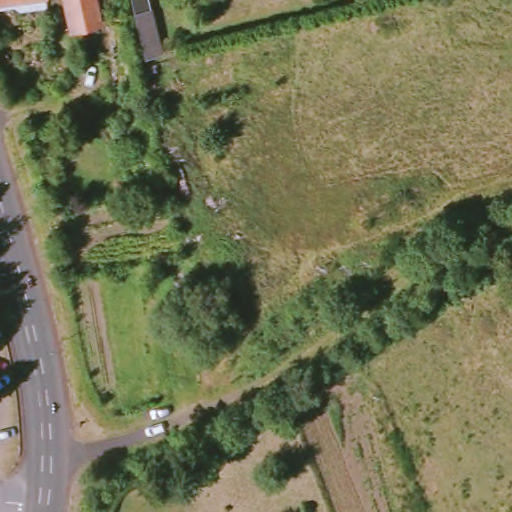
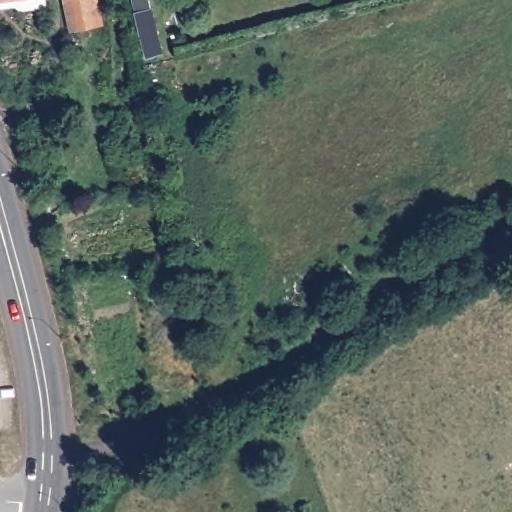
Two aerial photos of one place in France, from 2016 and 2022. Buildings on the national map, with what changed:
unchanged [(40,6),(13,9),(7,5),(0,6),(0,0),(39,0),(40,6)]
unchanged [(64,0),(94,0),(102,31),(74,37),(64,0)]
unchanged [(170,53),(146,60),(129,0),(153,0),(170,53)]

